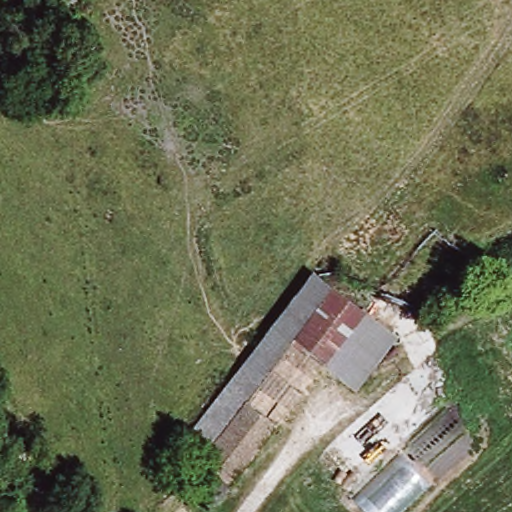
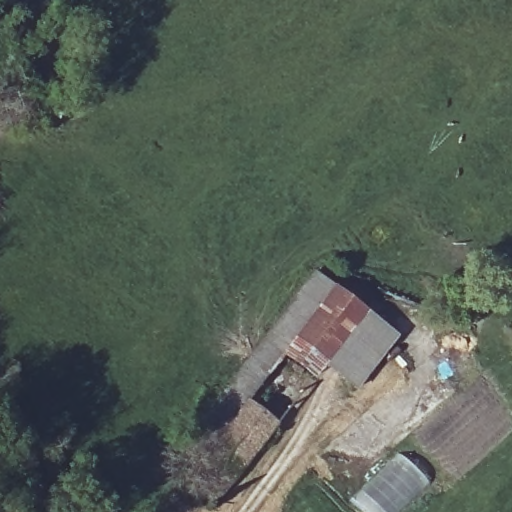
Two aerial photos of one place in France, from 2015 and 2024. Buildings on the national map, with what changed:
unchanged [(182,446),(317,276),(333,288),(197,459),(182,446)]
unchanged [(333,288),(335,290),(367,315),(329,365),(230,489),(197,459),(333,288)]
unchanged [(366,393),(329,365),(367,315),(405,344),(366,393)]
unchanged [(217,507),(212,505),(182,478),(197,459),(230,489),(220,503),(217,507)]

